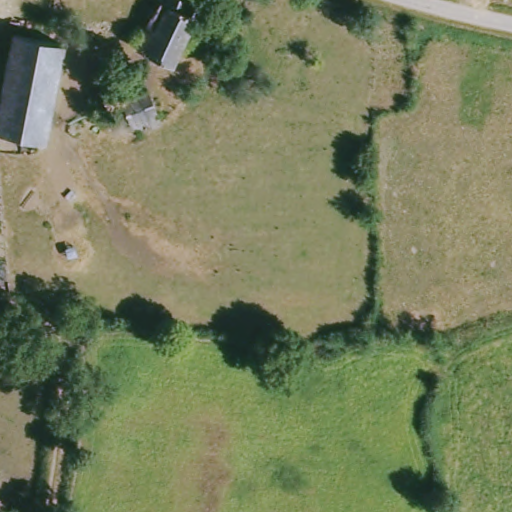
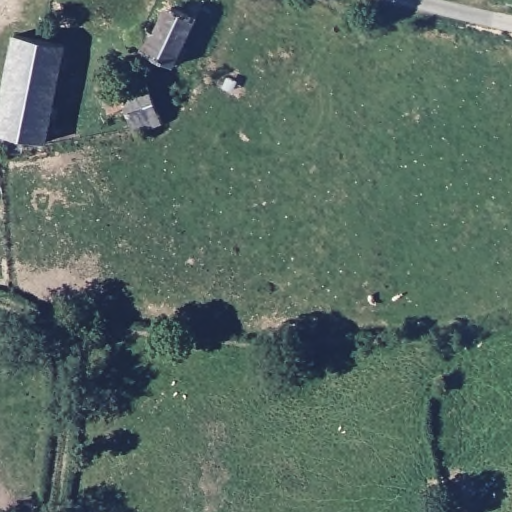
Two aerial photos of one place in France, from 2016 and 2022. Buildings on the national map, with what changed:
unchanged [(211,0),(178,69),(144,52),(152,35),(167,2),(169,0),(211,0)]
unchanged [(2,135),(19,38),(69,48),(54,142),(2,135)]
unchanged [(137,135),(129,112),(114,116),(106,95),(122,90),(125,97),(152,87),(169,125),(148,134),(137,135)]

